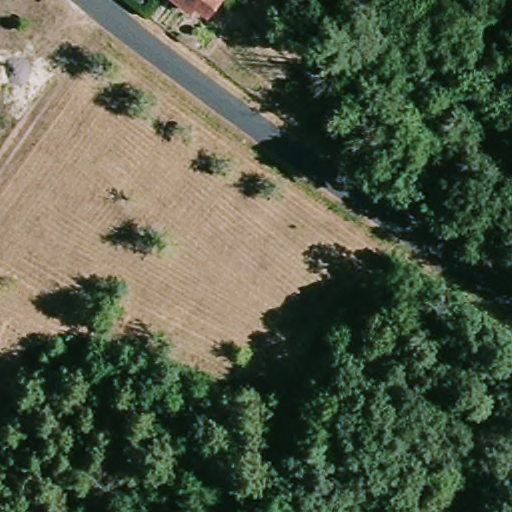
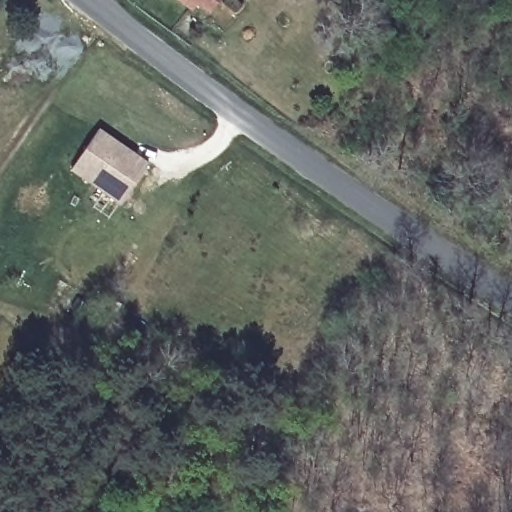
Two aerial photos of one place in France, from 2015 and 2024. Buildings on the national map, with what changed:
unchanged [(203,10),(193,1),(184,12),(170,0),(211,0),(203,10)]
new [(149,165),(119,206),(70,171),(98,130),(149,165)]

